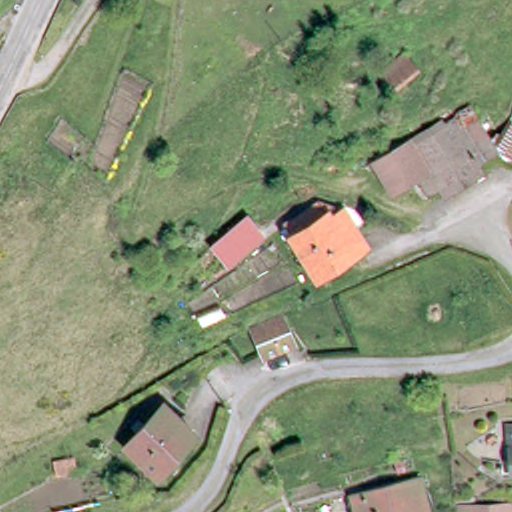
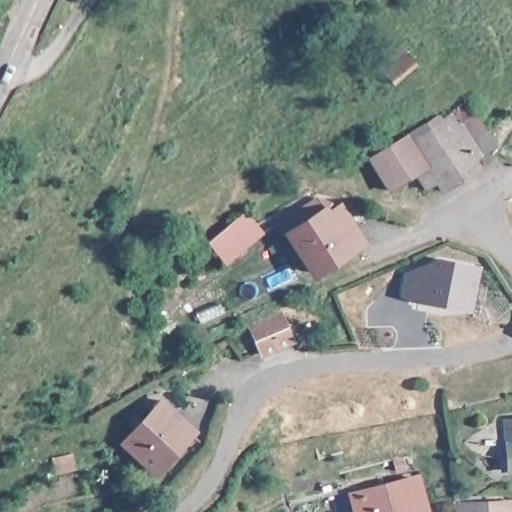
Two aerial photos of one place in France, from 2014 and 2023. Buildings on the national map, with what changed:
unchanged [(496,152),(470,164),(474,171),(442,188),(436,180),(421,188),(416,178),(387,190),(367,156),(426,125),(427,128),(470,105),(496,152)]
unchanged [(497,154),(512,129),(512,166),(497,154)]
unchanged [(225,258),(211,238),(247,214),(260,235),(225,258)]
unchanged [(292,234),(324,215),(349,219),(372,254),(322,283),(292,234)]
new [(406,273),(439,257),(481,267),(472,312),(400,299),(406,273)]
unchanged [(296,345),(265,358),(252,328),(283,315),(296,345)]
unchanged [(197,441),(158,482),(127,453),(167,412),(197,441)]
unchanged [(75,471),(54,474),(52,459),(72,456),(75,471)]
unchanged [(428,512),(361,512),(359,501),(392,494),(422,487),(426,503),(428,512)]
unchanged [(497,500),(512,499),(512,512),(466,512),(466,510),(465,503),(497,500)]

